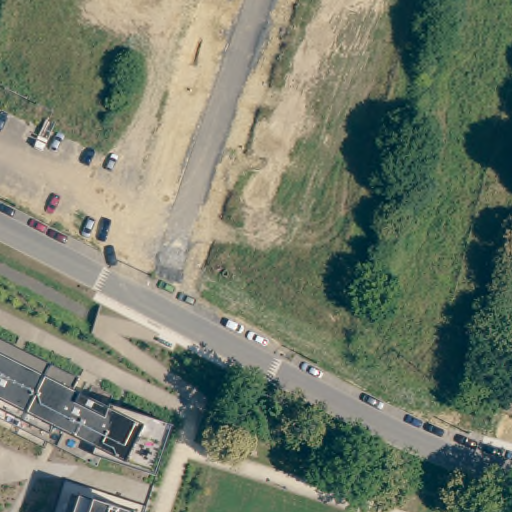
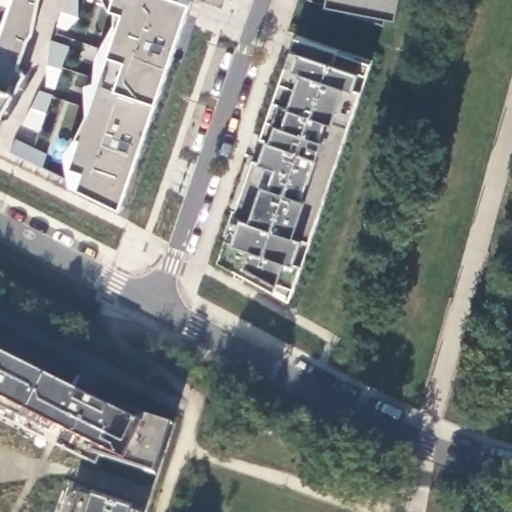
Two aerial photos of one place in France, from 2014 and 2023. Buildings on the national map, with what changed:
new [(17,67),(26,74),(14,94),(4,108),(0,119),(0,39),(12,0),(42,0),(17,67)]
new [(157,99),(122,205),(71,181),(65,149),(79,133),(89,113),(86,80),(96,78),(97,52),(121,20),(125,10),(111,6),(113,0),(192,0),(157,99)]
new [(399,14),(388,12),(385,23),(318,0),(402,0),(399,14)]
new [(372,62),(290,299),(220,260),(296,35),(372,62)]
unchanged [(156,476),(146,473),(93,456),(95,448),(55,428),(51,436),(0,411),(0,402),(0,401),(0,340),(80,379),(74,392),(107,409),(110,404),(163,422),(174,425),(156,476)]
unchanged [(130,512),(74,512),(80,495),(130,512)]

